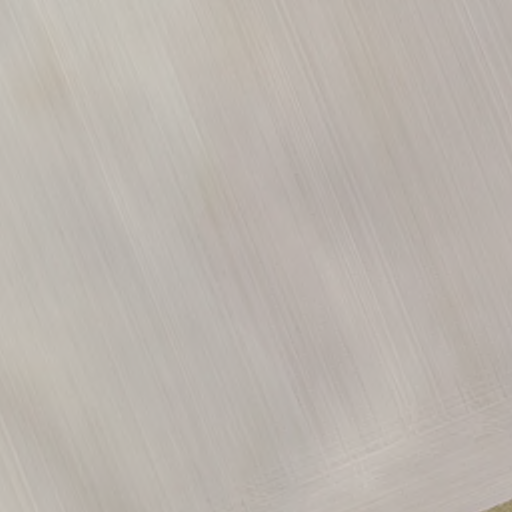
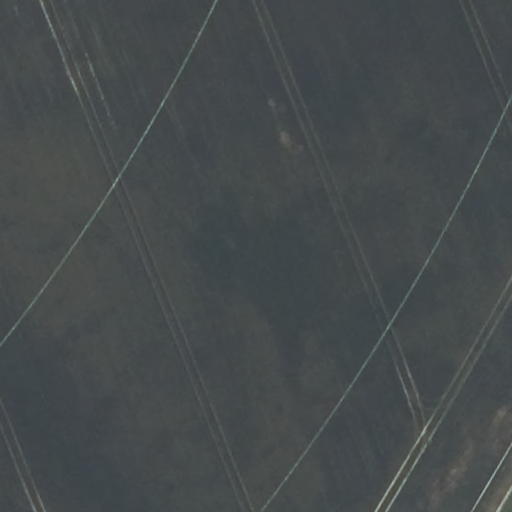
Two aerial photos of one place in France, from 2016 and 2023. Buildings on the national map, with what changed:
[]

